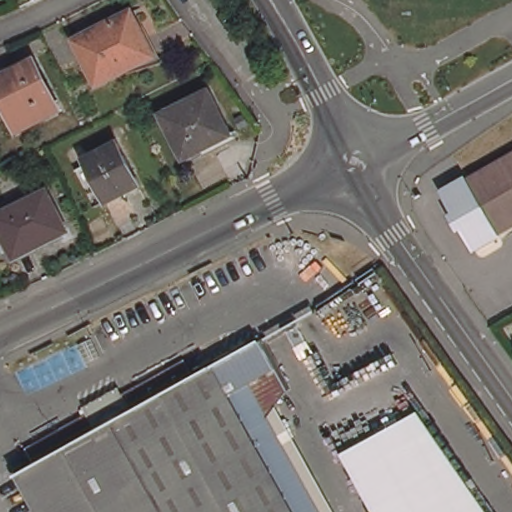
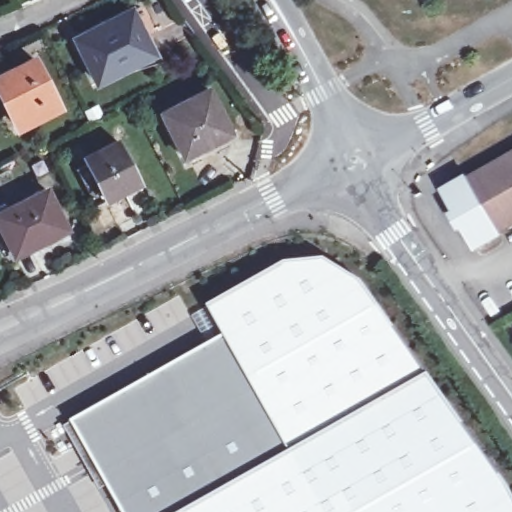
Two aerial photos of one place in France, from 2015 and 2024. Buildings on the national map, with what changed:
unchanged [(101,80),(79,39),(134,11),(154,54),(101,80)]
unchanged [(10,69),(32,59),(56,108),(17,128),(0,94),(0,79),(12,74),(10,69)]
unchanged [(183,156),(161,114),(208,91),(228,134),(183,156)]
unchanged [(105,205),(83,163),(118,145),(141,188),(105,205)]
unchanged [(512,156),(512,225),(499,233),(469,181),(512,156)]
new [(502,238),(474,253),(438,190),(465,174),(469,181),(499,233),(502,238)]
unchanged [(0,223),(0,212),(44,190),(64,229),(15,254),(0,223)]
new [(222,337),(205,309),(281,264),(321,260),(359,282),(427,378),(512,503),(512,512),(121,512),(73,421),(222,337)]
demolished [(93,504),(65,455),(56,439),(55,437),(90,417),(87,412),(120,394),(124,399),(186,364),(197,383),(261,346),(276,372),(249,388),(319,512),(97,512),(93,504)]
demolished [(28,453),(55,437),(56,439),(65,455),(93,504),(97,512),(38,512),(20,480),(38,469),(28,453)]

